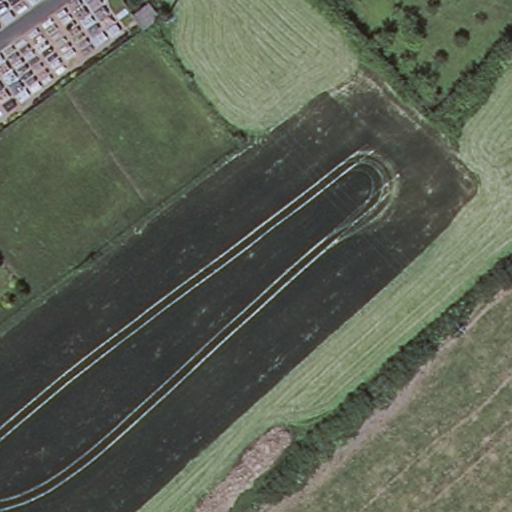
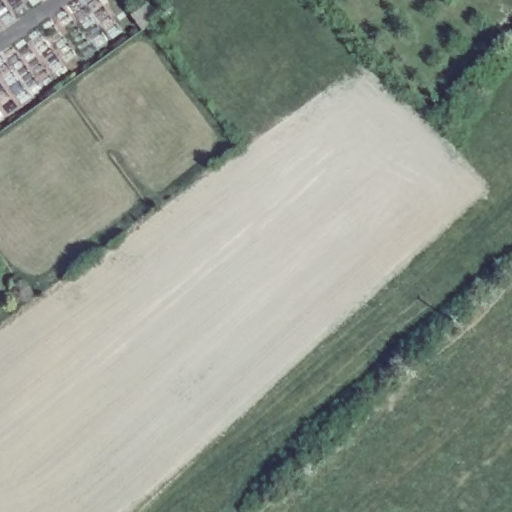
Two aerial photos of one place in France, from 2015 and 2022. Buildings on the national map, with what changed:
unchanged [(148,2),(159,17),(143,29),(133,14),(148,2)]

